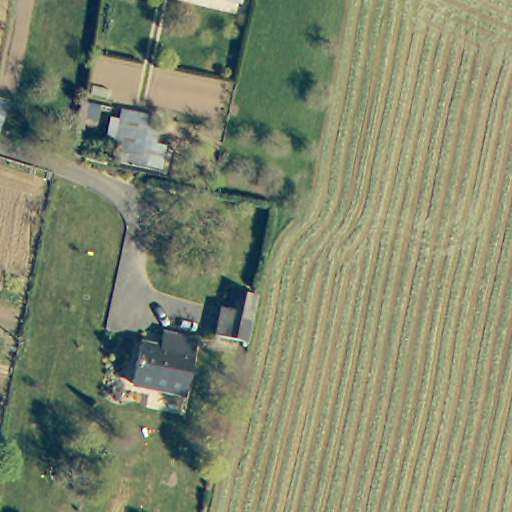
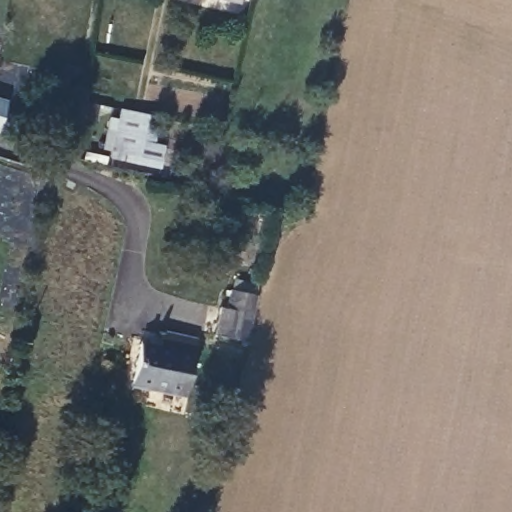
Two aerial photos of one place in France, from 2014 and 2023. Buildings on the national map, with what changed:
unchanged [(0,117),(0,104),(4,106),(0,117)]
unchanged [(115,118),(116,106),(145,115),(134,165),(107,158),(110,146),(102,142),(108,117),(115,118)]
unchanged [(215,335),(224,289),(252,294),(242,340),(215,335)]
unchanged [(192,335),(179,394),(128,382),(135,342),(159,347),(162,329),(192,335)]

